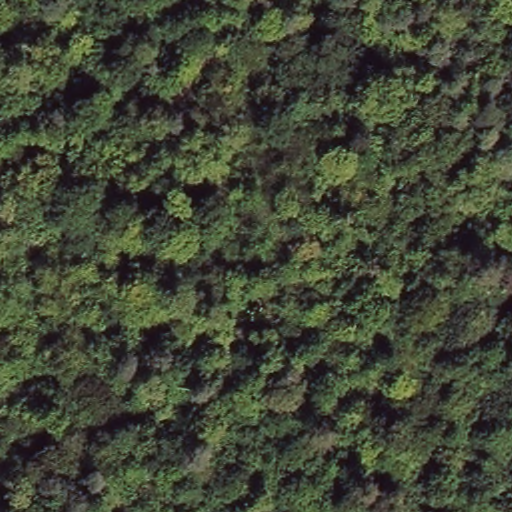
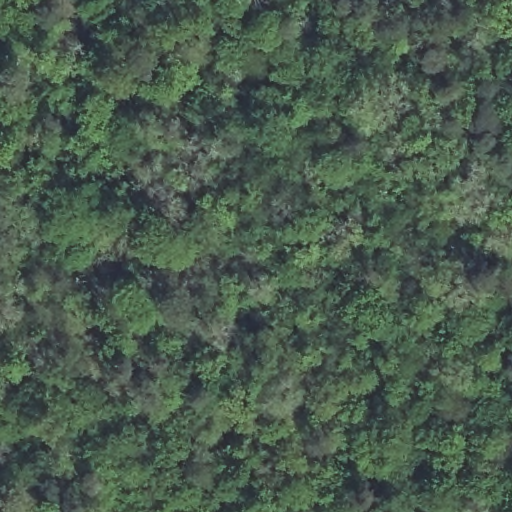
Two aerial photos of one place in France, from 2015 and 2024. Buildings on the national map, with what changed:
[]

